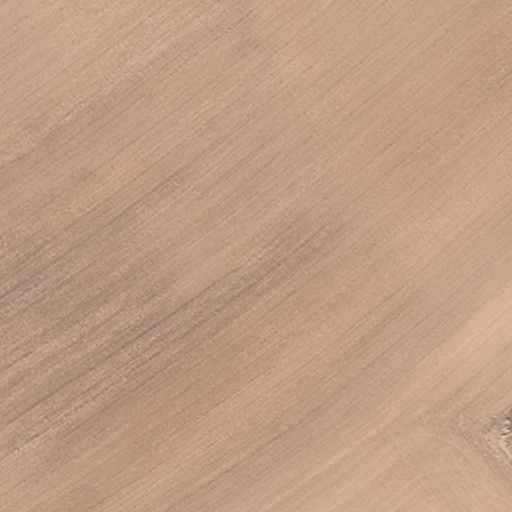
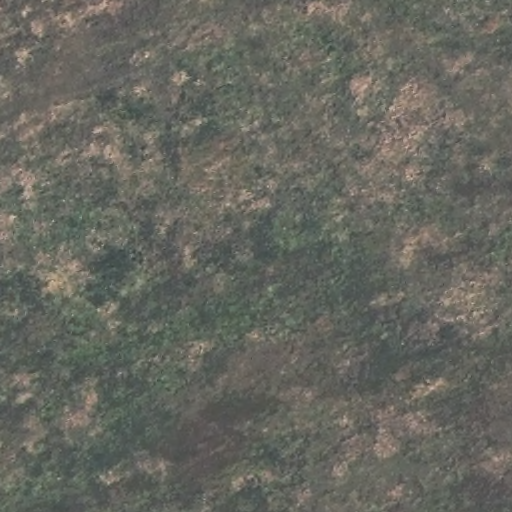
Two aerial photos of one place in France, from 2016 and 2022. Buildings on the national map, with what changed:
[]

